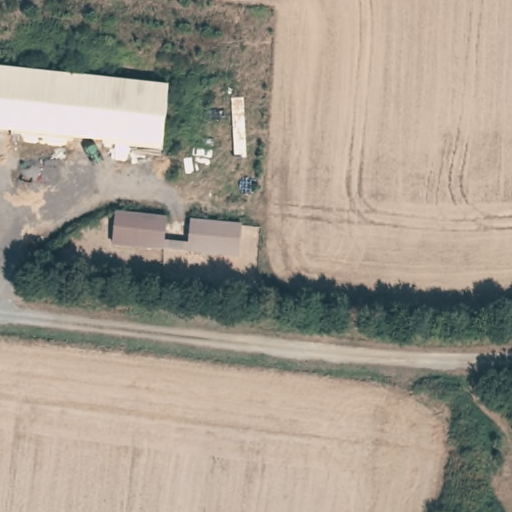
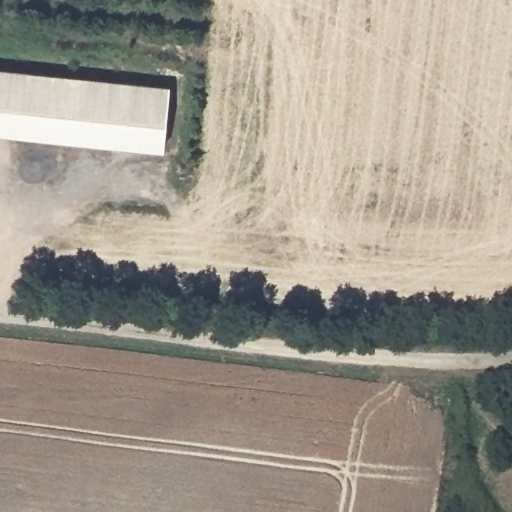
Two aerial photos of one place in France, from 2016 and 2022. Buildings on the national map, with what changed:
unchanged [(0,133),(0,72),(98,82),(168,89),(162,149),(91,142),(0,133)]
demolished [(117,213),(167,218),(164,249),(114,245),(117,213)]
demolished [(194,218),(243,224),(241,256),(192,251),(194,218)]

